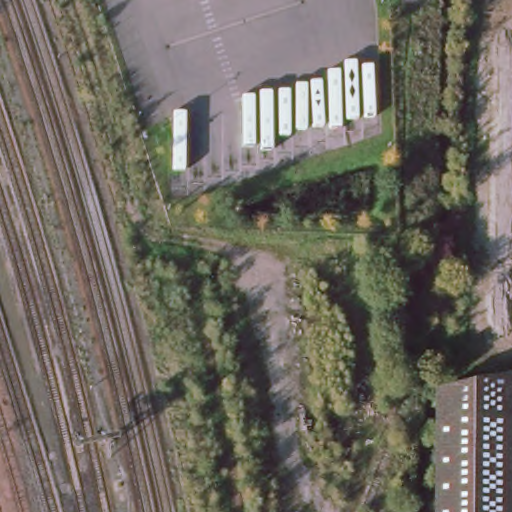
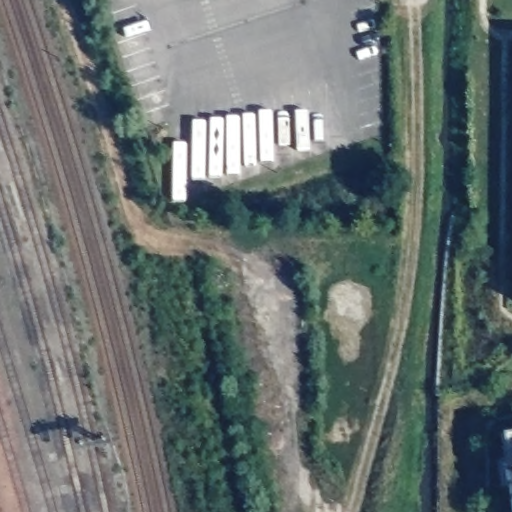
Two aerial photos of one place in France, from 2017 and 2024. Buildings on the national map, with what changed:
demolished [(512,334),(506,334),(509,291),(512,291),(512,334)]
demolished [(512,512),(436,512),(436,393),(512,376),(512,512)]
new [(502,486),(500,460),(505,458),(502,432),(512,431),(512,512),(509,484),(502,486)]

